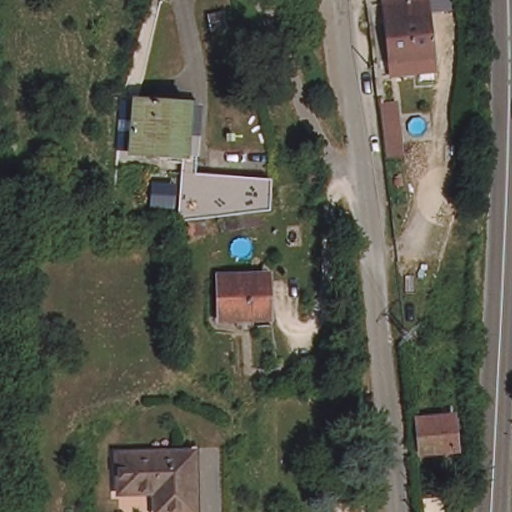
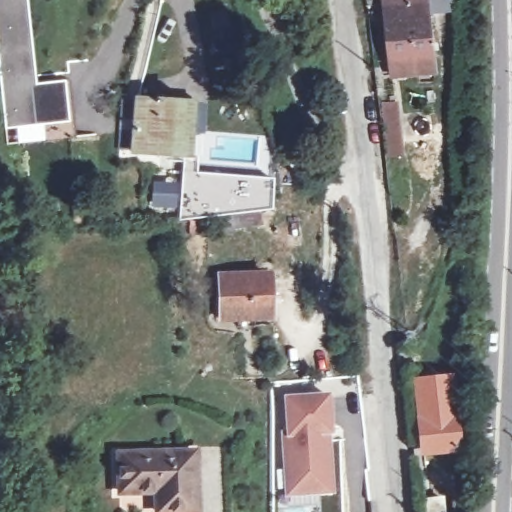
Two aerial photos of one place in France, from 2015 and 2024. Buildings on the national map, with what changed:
new [(36,84),(65,82),(69,122),(7,128),(0,65),(0,0),(27,0),(36,84)]
unchanged [(371,28),(372,0),(414,0),(413,9),(438,7),(439,59),(418,61),(420,76),(378,79),(371,28)]
unchanged [(137,102),(190,103),(190,157),(135,158),(137,102)]
unchanged [(238,211),(188,216),(193,167),(280,175),(282,208),(270,209),(272,221),(250,223),(239,224),(238,211)]
unchanged [(269,274),(270,318),(255,318),(255,326),(238,326),(238,318),(222,319),(220,275),(269,274)]
new [(285,398),(327,395),(329,431),(326,431),(327,440),(322,444),(325,491),(287,493),(283,434),(288,434),(285,398)]
unchanged [(452,417),(455,448),(423,451),(420,420),(452,417)]
unchanged [(160,491),(125,492),(125,454),(198,452),(200,511),(168,511),(160,512),(160,491)]
unchanged [(443,512),(427,512),(426,500),(441,498),(443,512)]

